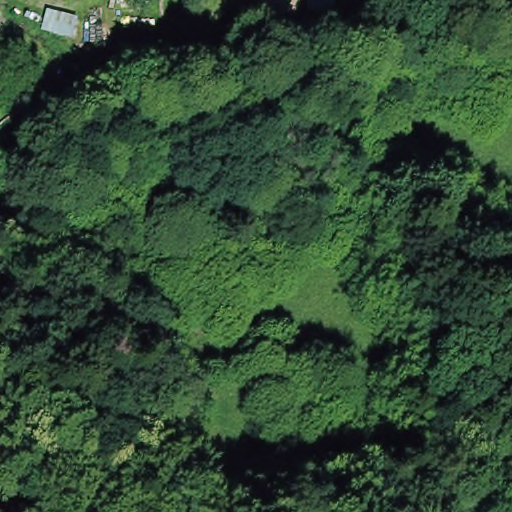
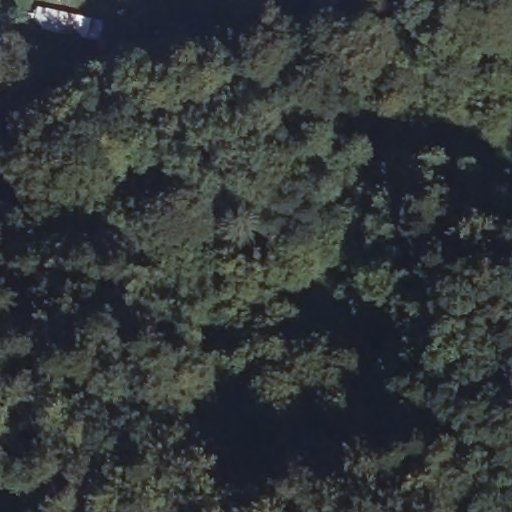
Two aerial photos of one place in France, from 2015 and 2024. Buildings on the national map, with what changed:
unchanged [(314,7),(312,0),(335,0),(335,1),(314,7)]

